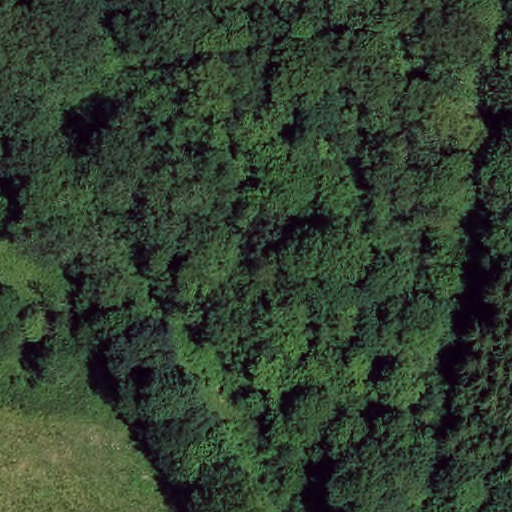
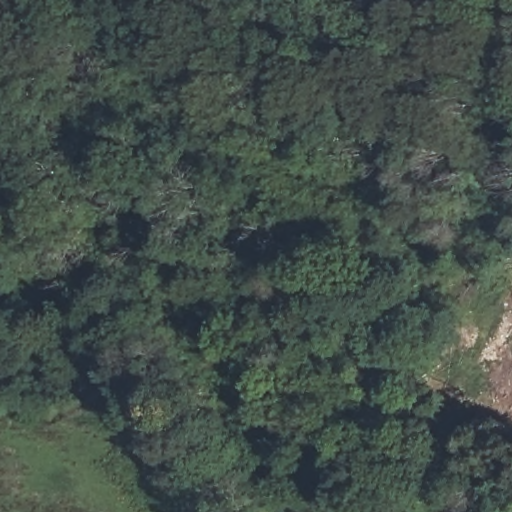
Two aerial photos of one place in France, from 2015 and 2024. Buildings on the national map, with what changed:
[]

